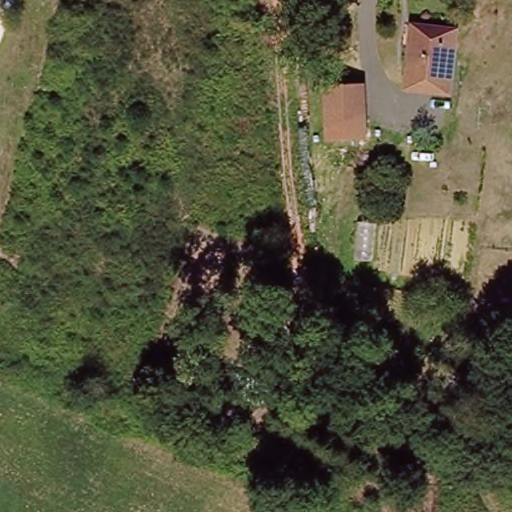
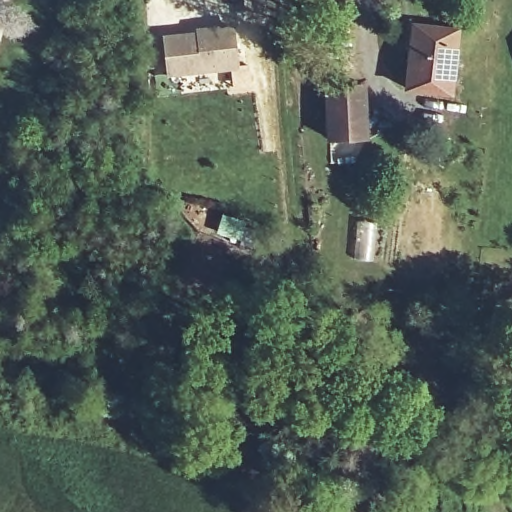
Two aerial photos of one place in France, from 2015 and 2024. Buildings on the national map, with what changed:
unchanged [(451,92),(406,87),(409,53),(403,53),(407,20),(459,28),(451,92)]
new [(228,30),(233,68),(161,77),(156,39),(228,30)]
unchanged [(363,84),(369,136),(346,138),(331,140),(326,88),(354,85),(363,84)]

